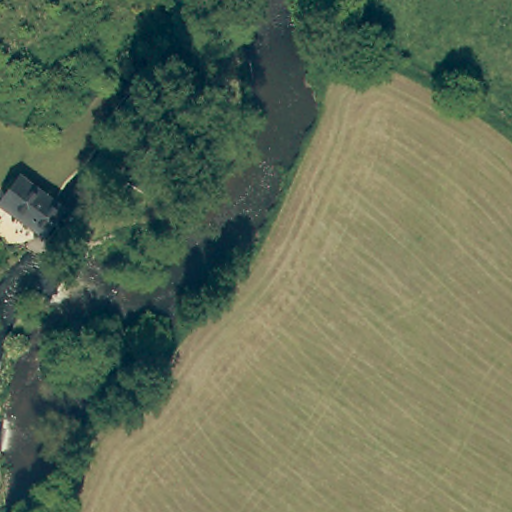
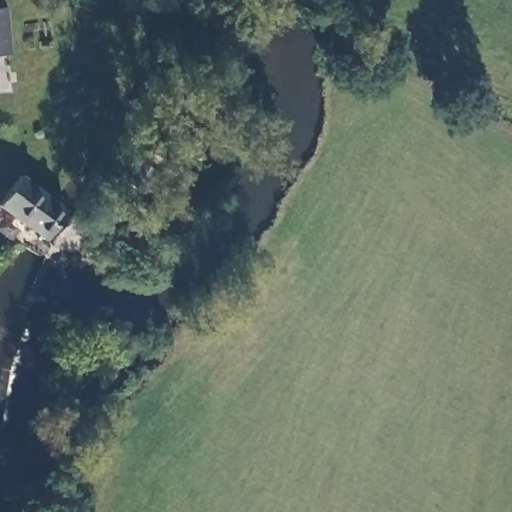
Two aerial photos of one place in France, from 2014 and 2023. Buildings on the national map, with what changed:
new [(0,54),(0,7),(5,7),(10,54),(0,54)]
unchanged [(0,212),(0,198),(16,178),(60,213),(40,242),(14,223),(0,212)]

